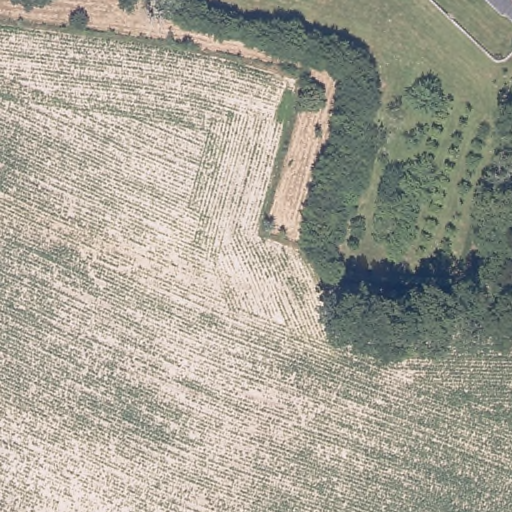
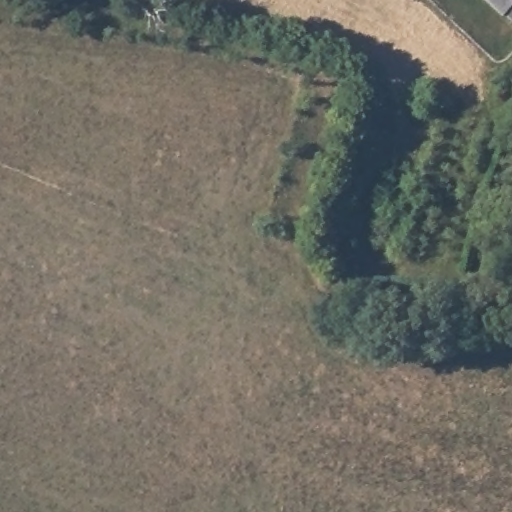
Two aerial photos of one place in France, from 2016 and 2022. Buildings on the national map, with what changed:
unchanged [(490,0),(512,0),(512,21),(490,0)]

